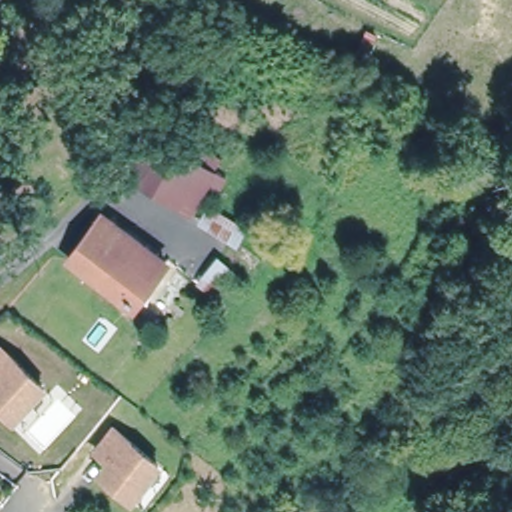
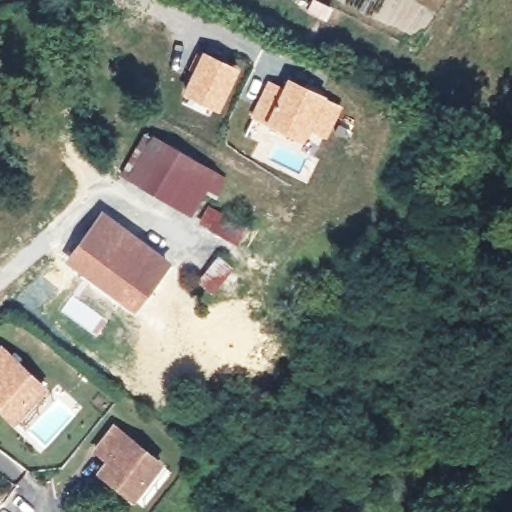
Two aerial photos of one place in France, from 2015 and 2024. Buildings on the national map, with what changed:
new [(200,49),(239,66),(217,111),(180,93),(200,49)]
new [(267,79),(280,85),(285,76),(342,106),(324,139),(309,131),(301,144),(249,116),(267,79)]
unchanged [(139,186),(122,176),(148,133),(165,143),(192,159),(167,202),(139,186)]
unchanged [(214,172),(189,215),(167,202),(192,159),(214,172)]
unchanged [(237,225),(229,239),(200,222),(208,208),(237,225)]
unchanged [(166,262),(133,306),(68,258),(101,214),(166,262)]
unchanged [(23,420),(12,410),(0,398),(0,336),(43,377),(54,388),(23,420)]
unchanged [(139,495),(127,486),(94,462),(103,450),(91,441),(109,417),(153,450),(166,459),(139,495)]

